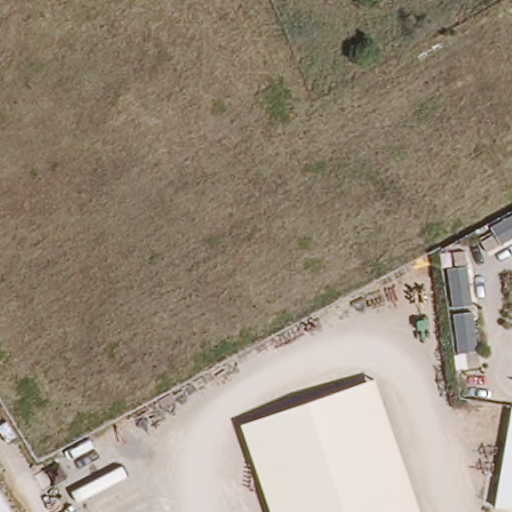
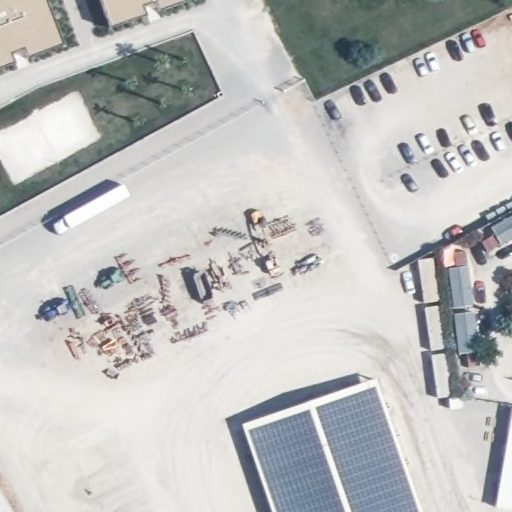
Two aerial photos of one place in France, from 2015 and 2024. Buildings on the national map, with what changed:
new [(0,0),(47,0),(63,44),(0,66),(0,0)]
new [(110,25),(101,0),(181,0),(110,25)]
unchanged [(376,375),(424,512),(277,512),(245,420),(376,375)]
unchanged [(492,503),(509,402),(512,402),(512,506),(492,503)]
unchanged [(0,512),(0,493),(12,512),(0,512)]

